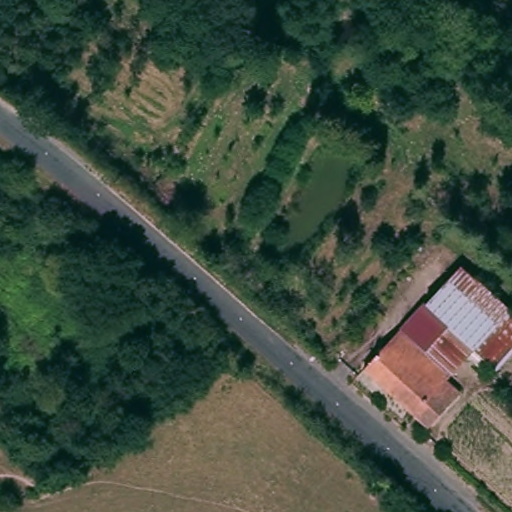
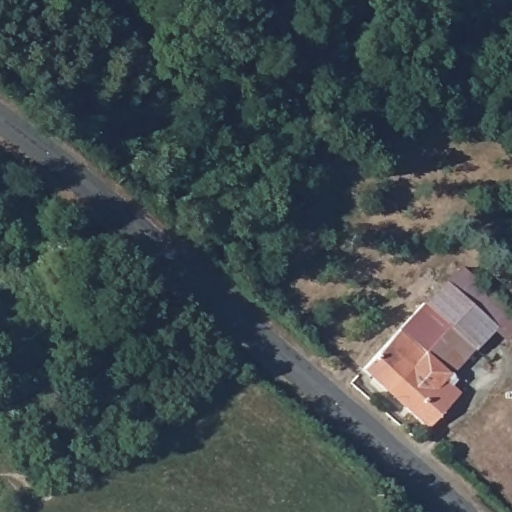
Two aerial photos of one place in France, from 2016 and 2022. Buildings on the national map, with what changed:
unchanged [(512,314),(512,356),(499,370),(477,350),(429,307),(464,270),(512,314)]
unchanged [(448,382),(460,394),(427,430),(364,373),(425,303),(429,307),(477,350),(448,382)]

